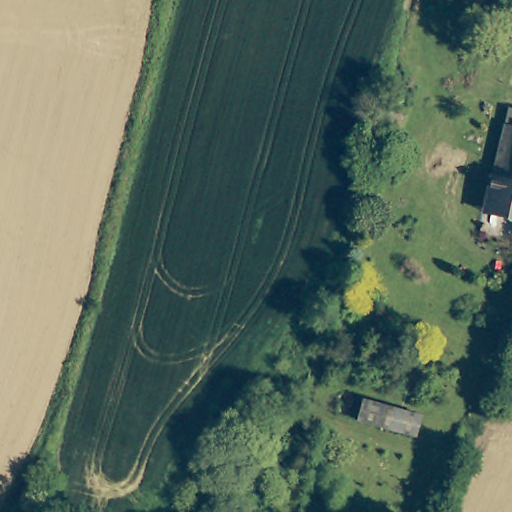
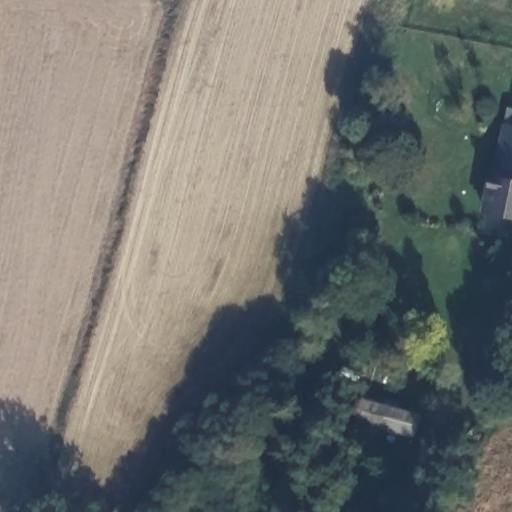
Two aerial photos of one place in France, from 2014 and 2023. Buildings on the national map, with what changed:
unchanged [(510,215),(492,212),(493,207),(497,191),(500,177),(502,178),(506,160),(512,128),(512,216),(510,215)]
unchanged [(412,437),(355,420),(357,411),(361,398),(365,399),(418,415),(412,437)]

